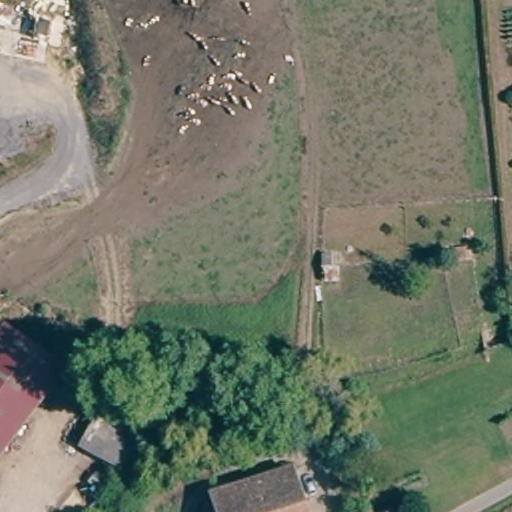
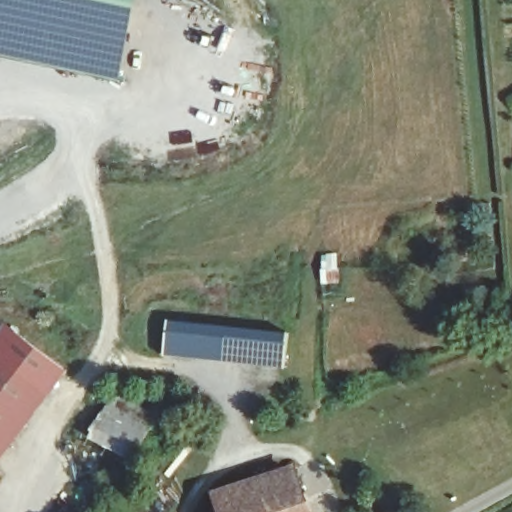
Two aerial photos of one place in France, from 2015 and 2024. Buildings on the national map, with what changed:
new [(138,0),(122,80),(0,55),(0,0),(138,0)]
new [(167,354),(170,322),(289,332),(286,367),(167,354)]
unchanged [(0,362),(0,340),(11,324),(63,365),(41,394),(0,362)]
unchanged [(41,394),(0,448),(0,362),(41,394)]
unchanged [(155,432),(121,478),(82,449),(117,403),(155,432)]
unchanged [(312,512),(224,512),(218,494),(297,467),(312,512)]
unchanged [(1,476),(0,477),(0,475),(1,476)]
unchanged [(386,512),(378,512),(385,509),(386,512)]

